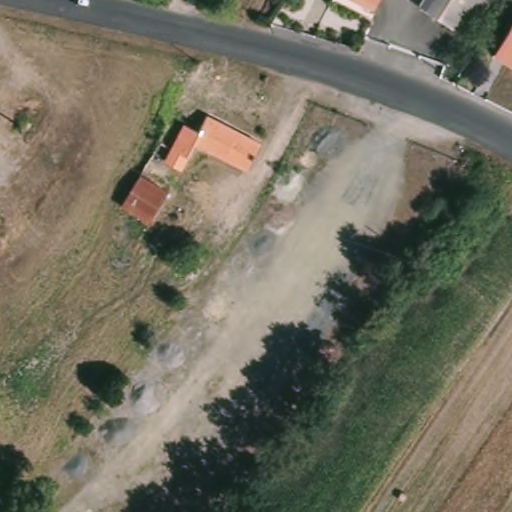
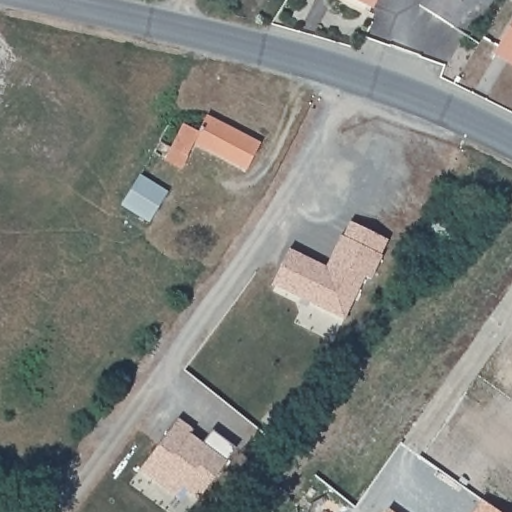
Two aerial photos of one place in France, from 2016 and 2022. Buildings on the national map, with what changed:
unchanged [(334,0),(375,0),(367,15),(334,0)]
unchanged [(488,0),(464,36),(414,6),(419,0),(488,0)]
unchanged [(512,18),(512,71),(490,58),(512,18)]
unchanged [(260,144),(246,169),(193,142),(186,154),(170,146),(182,124),(197,131),(206,116),(260,144)]
unchanged [(187,158),(182,168),(164,158),(169,148),(187,158)]
unchanged [(138,174),(140,174),(167,192),(149,222),(121,204),(138,174)]
new [(319,264),(326,267),(340,235),(342,236),(349,221),(387,239),(380,254),(381,255),(370,279),(364,276),(344,319),(272,285),(289,249),(319,264)]
new [(192,430),(187,438),(190,435),(199,441),(202,444),(212,431),(236,449),(197,500),(182,488),(175,497),(140,471),(178,420),(192,430)]

